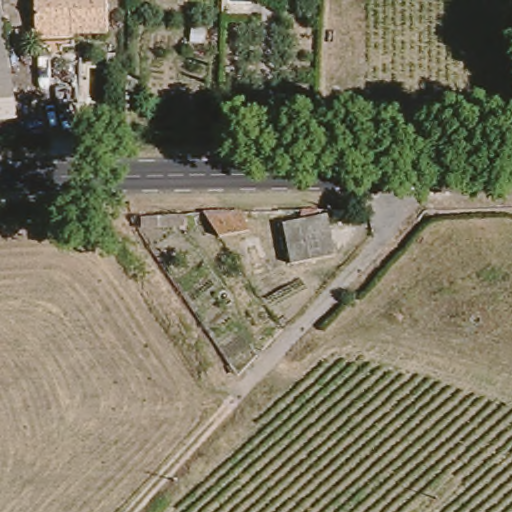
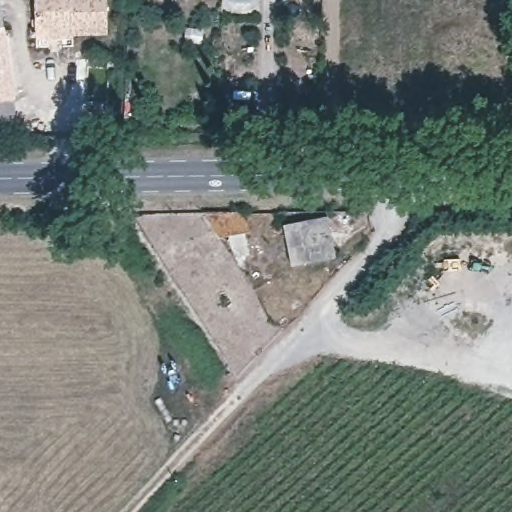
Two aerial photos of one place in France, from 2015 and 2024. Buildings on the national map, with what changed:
unchanged [(0,0),(2,0),(7,27),(0,29),(0,0)]
unchanged [(30,0),(106,0),(106,31),(67,32),(66,37),(31,37),(31,26),(30,0)]
unchanged [(0,29),(7,27),(18,97),(0,100),(0,29)]
unchanged [(249,234),(199,247),(183,216),(244,210),(249,234)]
unchanged [(286,224),(329,220),(335,260),(291,265),(286,224)]

